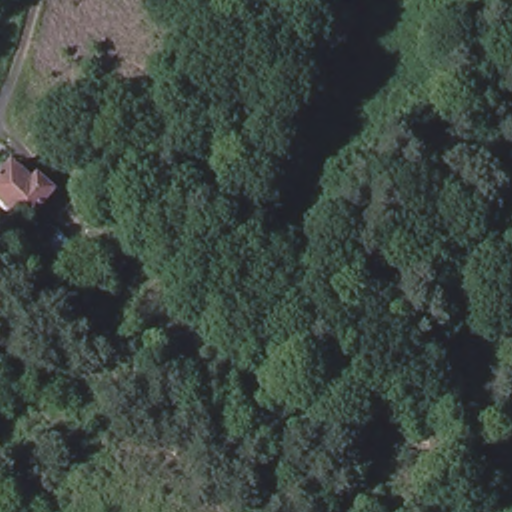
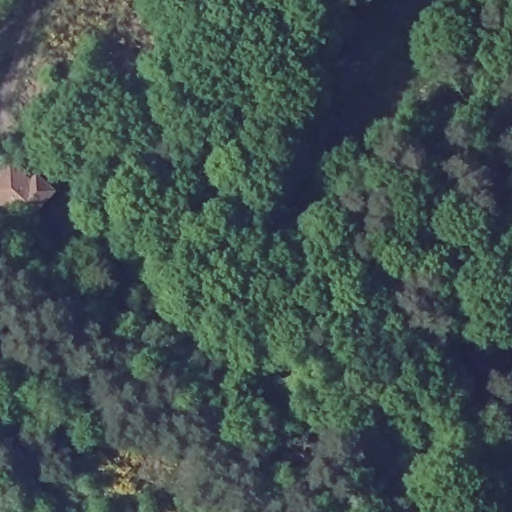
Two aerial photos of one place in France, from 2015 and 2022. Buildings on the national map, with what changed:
unchanged [(10,159),(32,178),(37,172),(53,186),(22,220),(0,201),(0,170),(10,159)]

